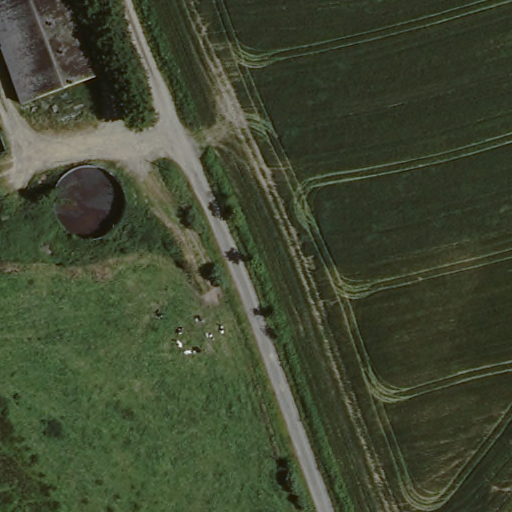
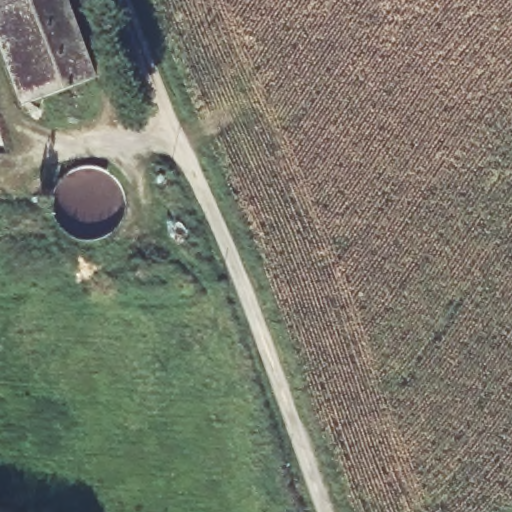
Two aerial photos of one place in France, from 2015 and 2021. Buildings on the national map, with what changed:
unchanged [(19,104),(0,54),(0,0),(63,0),(91,79),(19,104)]

